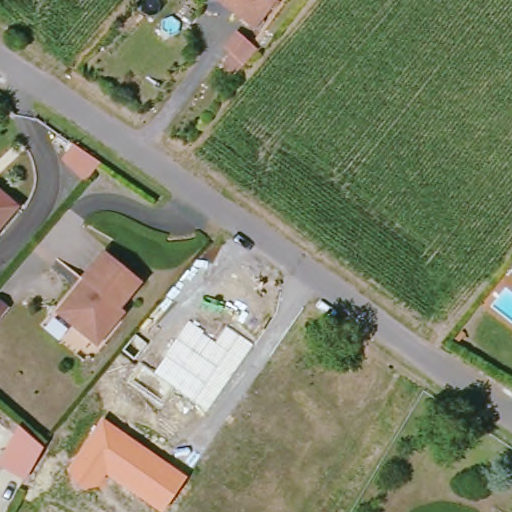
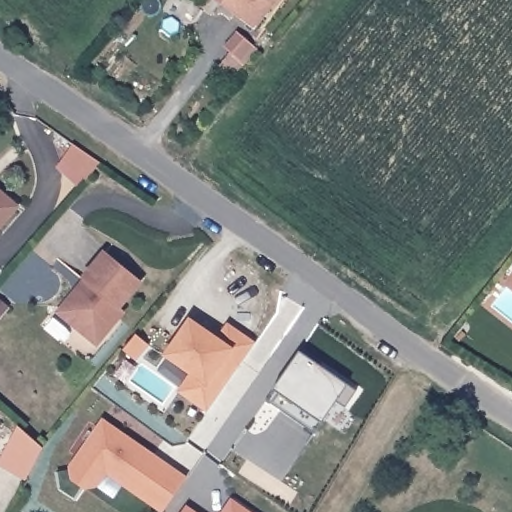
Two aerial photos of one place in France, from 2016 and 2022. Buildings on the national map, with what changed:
unchanged [(250,32),(216,5),(220,0),(276,0),(250,32)]
new [(229,53),(221,46),(232,32),(251,47),(230,74),(219,66),(229,53)]
new [(76,141),(103,160),(91,174),(66,152),(76,141)]
unchanged [(15,203),(0,221),(0,190),(15,203)]
unchanged [(59,302),(68,289),(78,277),(101,248),(138,279),(115,308),(120,313),(92,345),(66,322),(52,310),(59,302)]
new [(164,356),(188,322),(204,333),(216,341),(225,327),(253,346),(206,411),(191,401),(178,391),(190,374),(164,356)]
new [(297,351),(352,390),(340,407),(331,401),(308,432),(262,399),(297,351)]
unchanged [(163,512),(157,512),(105,475),(96,488),(83,491),(68,479),(66,467),(102,419),(187,478),(163,512)]
unchanged [(43,448),(23,483),(0,468),(0,458),(16,424),(43,448)]
new [(249,512),(219,512),(229,498),(249,512)]
new [(196,512),(179,512),(184,504),(196,512)]

